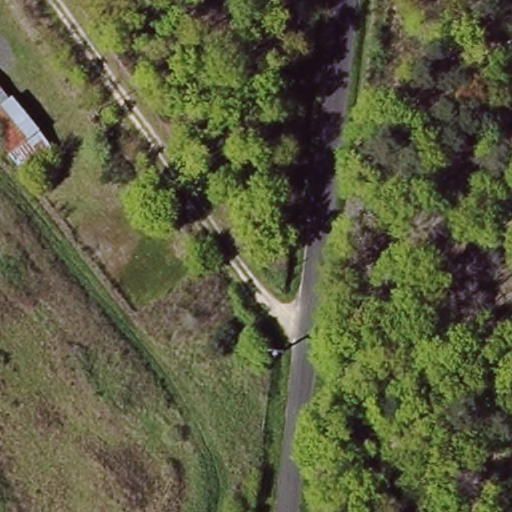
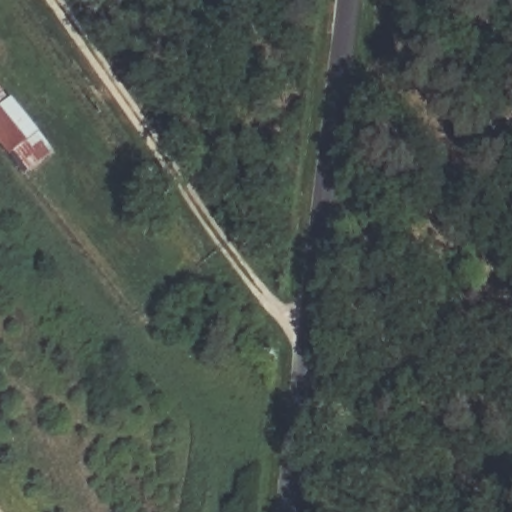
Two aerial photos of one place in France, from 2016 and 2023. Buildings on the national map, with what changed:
unchanged [(15,180),(0,160),(0,85),(53,150),(15,180)]

